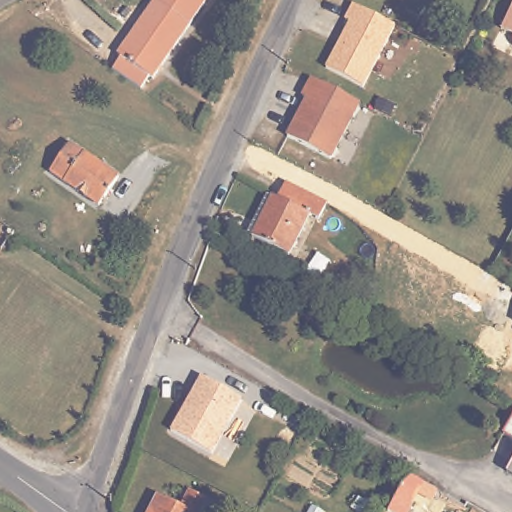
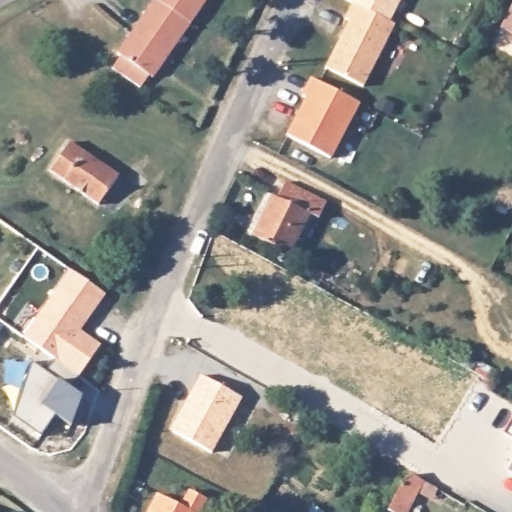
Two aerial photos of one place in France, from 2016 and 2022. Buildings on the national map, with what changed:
unchanged [(398,25),(367,87),(330,68),(353,21),(348,19),(356,3),(398,25)]
unchanged [(512,9),(512,31),(502,25),(512,9)]
unchanged [(289,134),(309,96),(305,94),(314,77),(361,102),(331,158),(289,134)]
unchanged [(97,199),(46,161),(67,133),(118,170),(97,199)]
unchanged [(310,212),(290,251),(253,233),(272,193),(277,195),(286,179),(327,201),(320,217),(310,212)]
new [(102,347),(81,378),(57,361),(26,339),(74,270),(109,295),(91,320),(82,333),(102,347)]
new [(512,322),(511,321),(512,318),(512,322)]
new [(34,363),(47,373),(57,361),(81,378),(72,390),(84,399),(73,428),(57,417),(44,439),(16,419),(34,363)]
unchanged [(170,429),(202,375),(245,399),(214,452),(170,429)]
unchanged [(512,413),(512,436),(502,430),(512,413)]
unchanged [(512,455),(512,474),(503,469),(512,455)]
unchanged [(157,490),(180,503),(188,487),(205,496),(197,512),(145,512),(157,490)]
demolished [(405,494),(415,487),(426,493),(415,512),(395,512),(405,494)]

